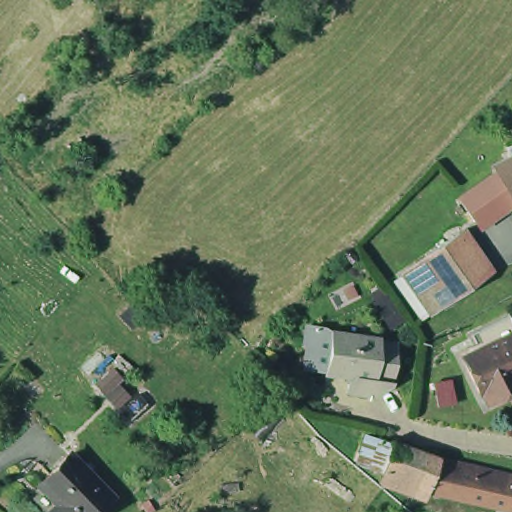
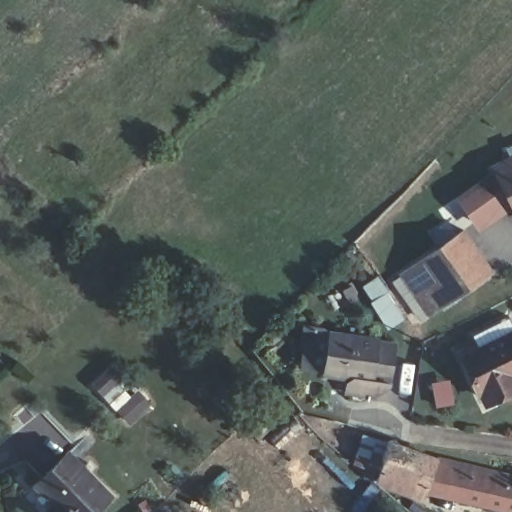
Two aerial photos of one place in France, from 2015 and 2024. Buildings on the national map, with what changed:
unchanged [(495,161),(512,153),(512,197),(510,192),(498,168),(495,161)]
unchanged [(460,195),(498,168),(510,192),(475,216),(460,195)]
unchanged [(400,273),(458,234),(465,244),(471,240),(480,252),(474,257),(487,275),(430,315),(400,273)]
unchanged [(354,335),(391,340),(385,380),(370,391),(342,388),(344,378),(339,372),(320,370),(320,365),(299,362),(305,322),(327,326),(354,330),(354,335)]
unchanged [(490,404),(486,397),(484,398),(467,363),(484,355),(477,340),(512,322),(512,385),(507,387),(510,394),(490,404)]
unchanged [(385,469),(385,467),(361,458),(371,431),(395,439),(398,438),(410,442),(435,450),(458,457),(450,490),(420,481),(385,469)]
unchanged [(43,485),(74,455),(115,498),(101,512),(53,512),(61,504),(43,485)]
unchanged [(450,490),(458,457),(477,462),(512,471),(512,505),(450,490)]

